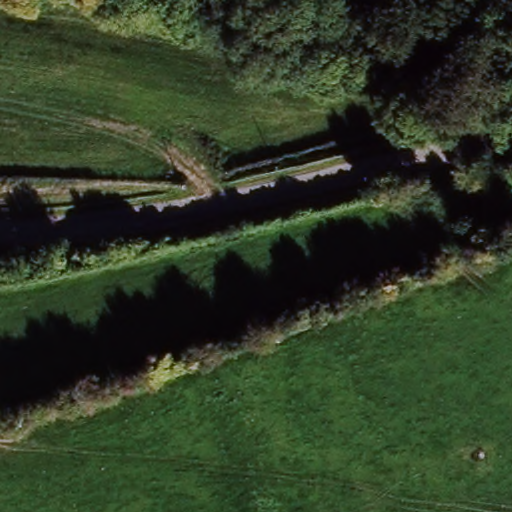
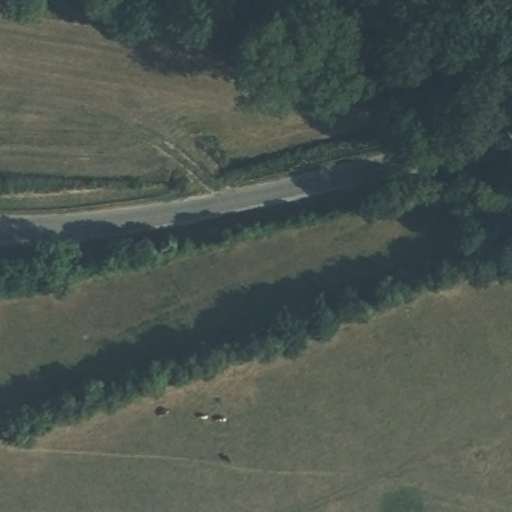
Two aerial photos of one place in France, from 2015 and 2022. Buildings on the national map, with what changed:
[]

